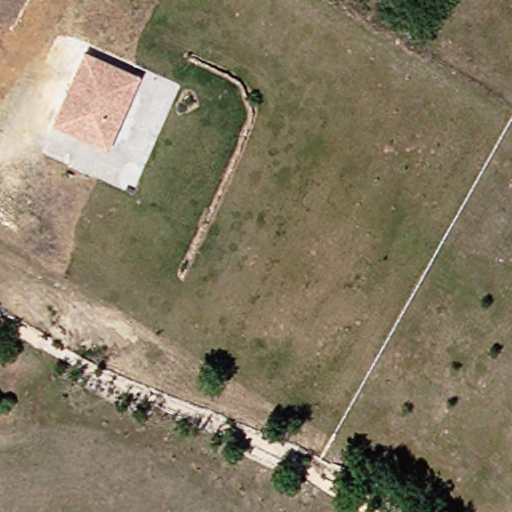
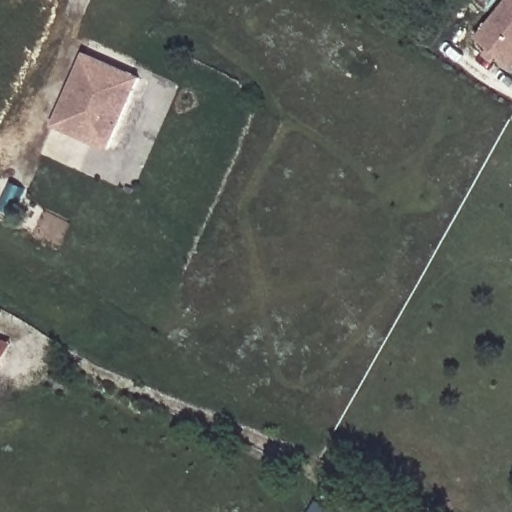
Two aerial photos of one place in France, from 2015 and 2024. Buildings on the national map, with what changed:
new [(512,0),(512,66),(510,69),(474,40),(503,0),(512,0)]
unchanged [(82,52),(137,76),(106,149),(51,126),(82,52)]

